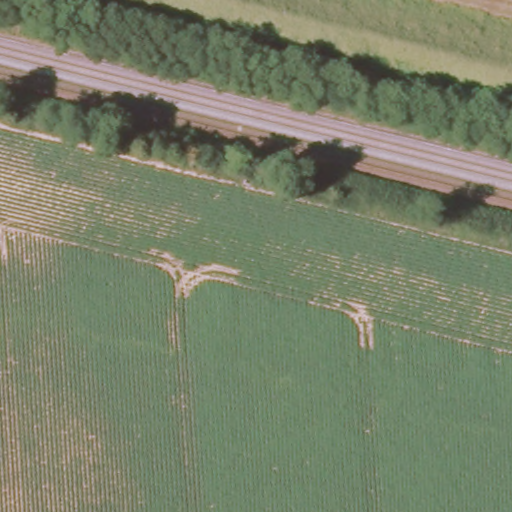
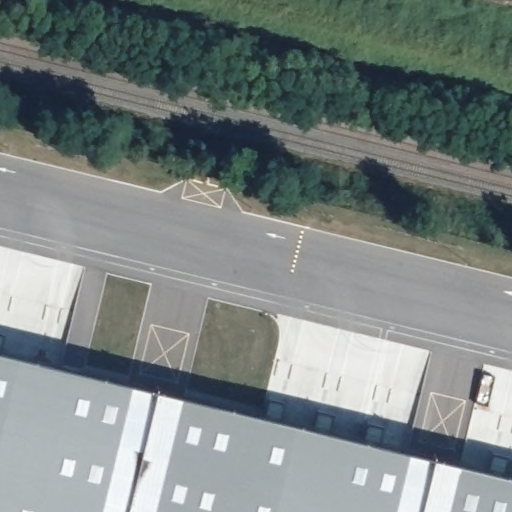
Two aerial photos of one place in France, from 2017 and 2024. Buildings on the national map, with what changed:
new [(0,512),(0,350),(512,475),(512,512),(0,512)]

